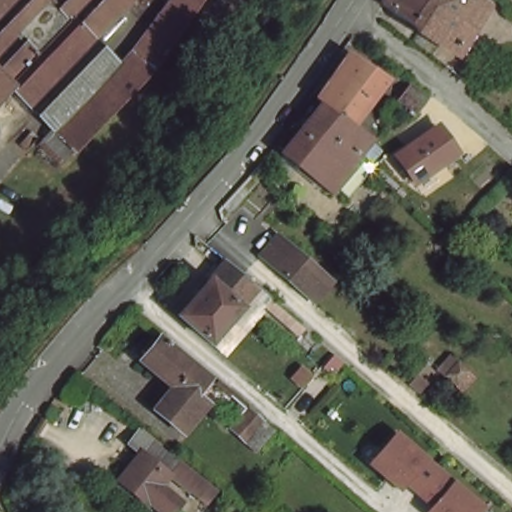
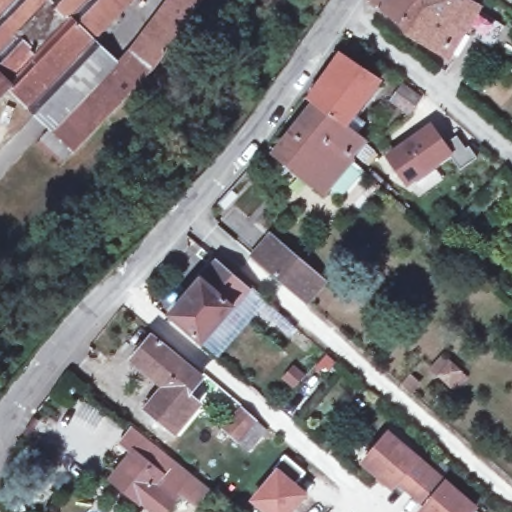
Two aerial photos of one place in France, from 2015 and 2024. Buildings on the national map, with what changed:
unchanged [(0,103),(0,0),(136,0),(96,42),(122,66),(176,0),(210,0),(155,76),(80,150),(78,150),(62,165),(38,142),(53,127),(14,89),(0,103)]
unchanged [(385,21),(360,5),(362,0),(399,0),(385,21)]
unchanged [(399,0),(447,0),(462,10),(437,53),(385,21),(399,0)]
unchanged [(316,100),(314,98),(311,95),(344,55),(378,82),(345,124),(316,100)]
unchanged [(357,132),(344,147),(352,159),(325,190),(274,150),(316,100),(345,124),(357,132)]
unchanged [(385,157),(430,124),(452,155),(408,188),(385,157)]
unchanged [(262,230),(266,227),(292,249),(321,274),(303,295),(273,270),(247,247),(262,230)]
unchanged [(246,289),(252,295),(206,347),(170,316),(216,263),(236,280),(246,289)]
unchanged [(131,356),(150,335),(200,376),(187,392),(199,401),(175,431),(146,408),(165,385),(131,356)]
unchanged [(264,433),(247,455),(222,435),(240,414),(264,433)]
unchanged [(137,446),(132,452),(108,436),(119,422),(210,484),(200,495),(189,488),(137,446)]
unchanged [(397,482),(390,490),(358,465),(390,428),(480,507),(475,512),(418,512),(423,505),(397,482)]
unchanged [(171,512),(138,512),(103,485),(132,452),(137,446),(189,488),(171,512)]
new [(272,472),(283,459),(304,476),(293,489),(305,498),(293,512),(262,512),(252,504),(276,476),(272,472)]

